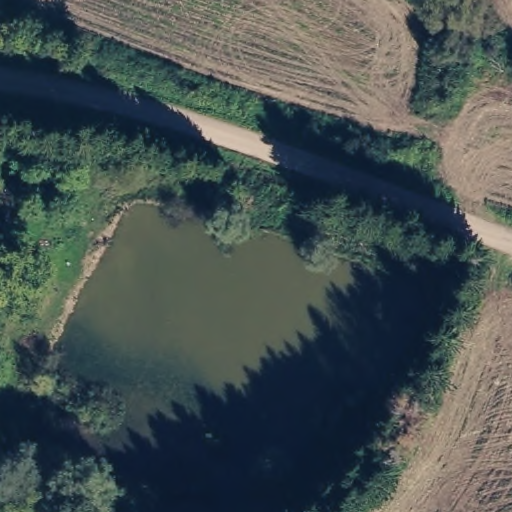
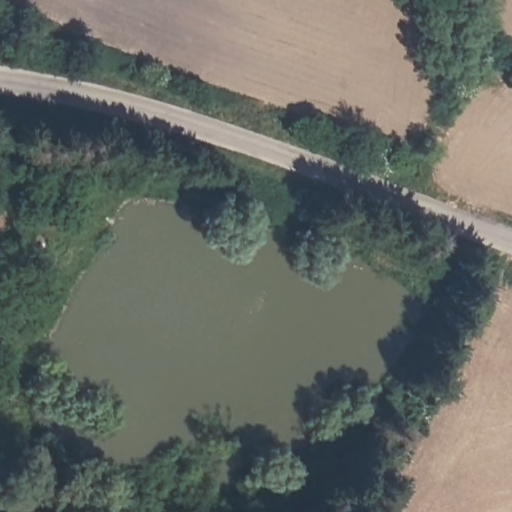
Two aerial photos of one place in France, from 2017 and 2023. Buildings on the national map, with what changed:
[]

